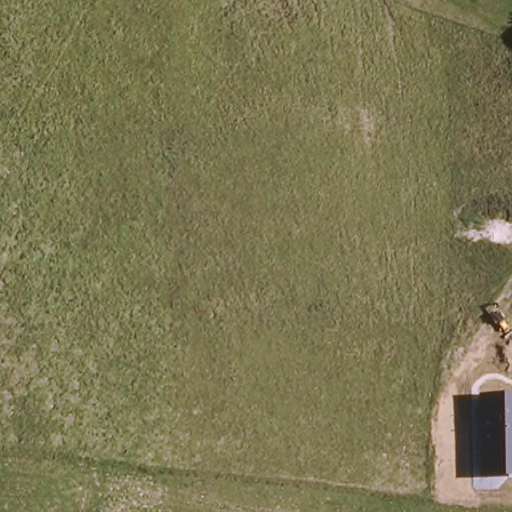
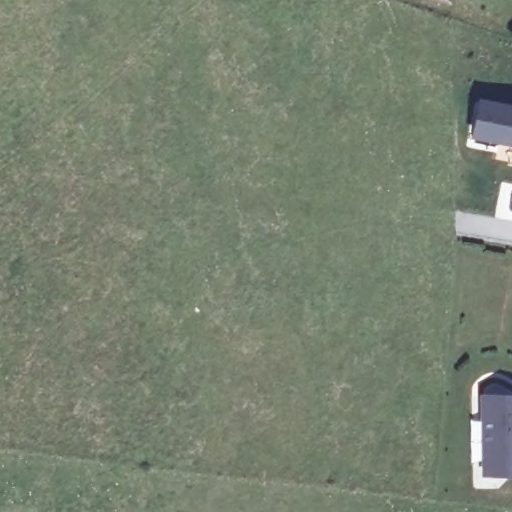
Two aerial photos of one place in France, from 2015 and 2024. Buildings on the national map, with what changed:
new [(470,138),(477,97),(512,105),(512,146),(470,138)]
unchanged [(478,396),(512,395),(512,477),(481,477),(478,396)]

